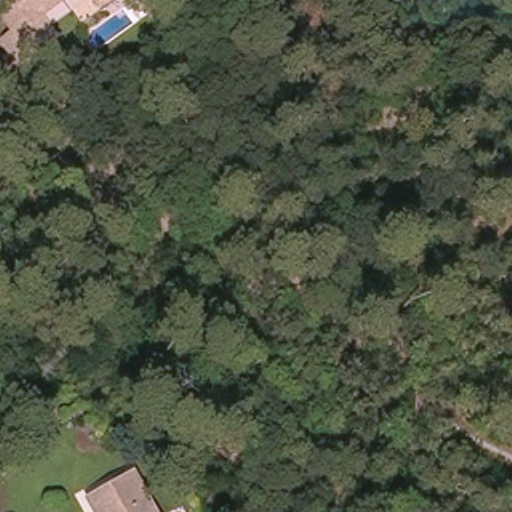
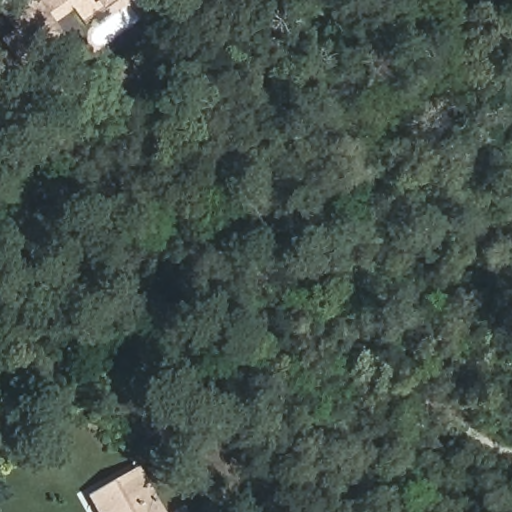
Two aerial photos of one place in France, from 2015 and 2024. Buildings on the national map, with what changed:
unchanged [(29,18),(45,40),(14,64),(0,45),(12,37),(0,21),(0,0),(53,0),(29,18)]
unchanged [(94,5),(90,0),(101,0),(94,5)]
unchanged [(92,502),(106,493),(133,477),(154,512),(98,512),(96,508),(92,502)]

